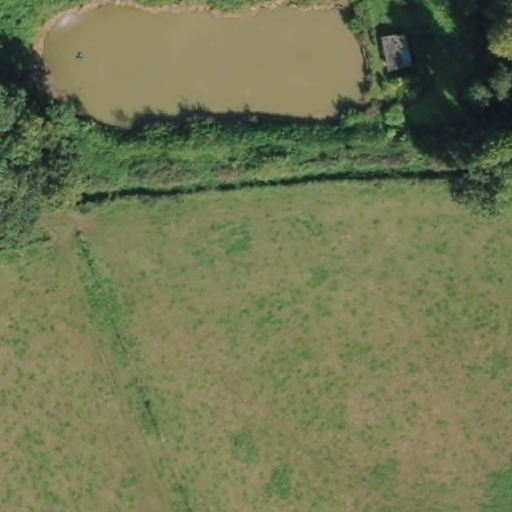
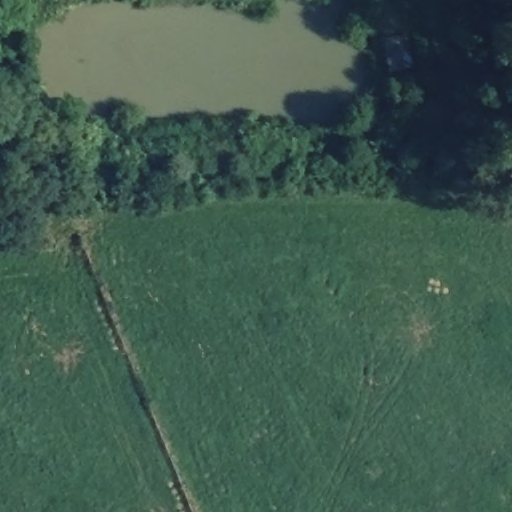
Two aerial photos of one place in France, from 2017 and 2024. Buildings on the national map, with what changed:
unchanged [(419,74),(393,77),(386,37),(412,34),(419,74)]

